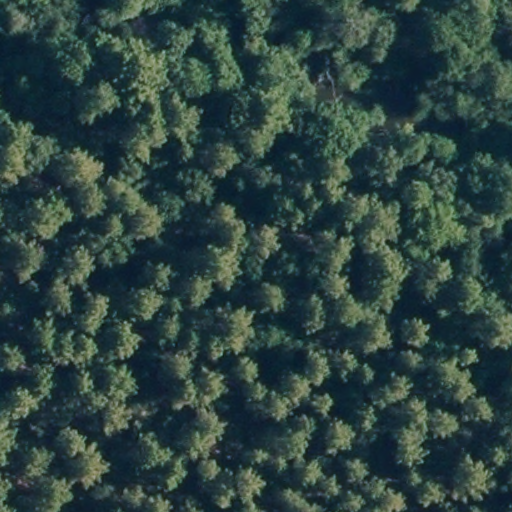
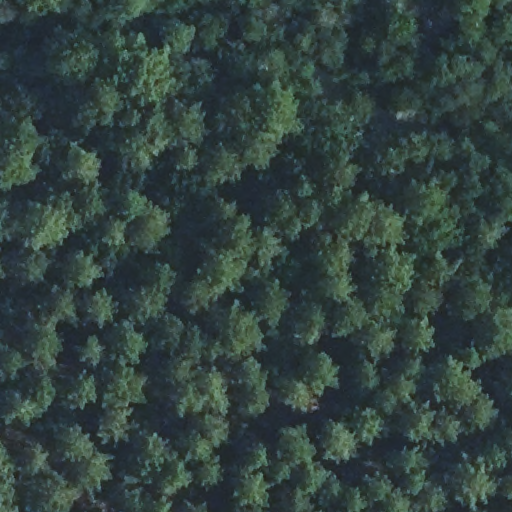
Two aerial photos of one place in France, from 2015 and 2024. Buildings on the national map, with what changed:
[]

